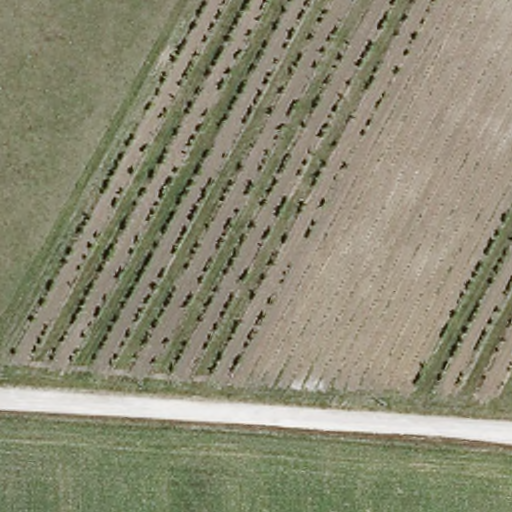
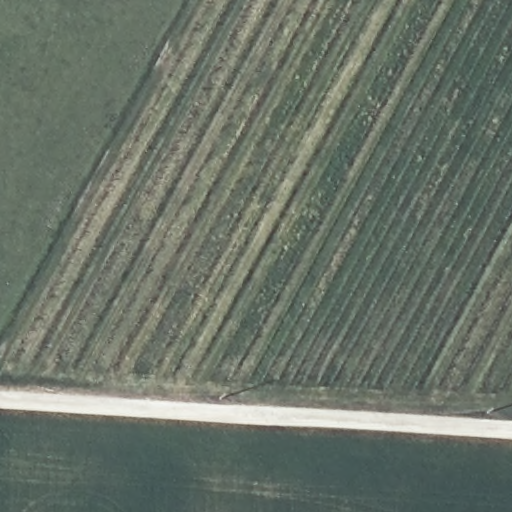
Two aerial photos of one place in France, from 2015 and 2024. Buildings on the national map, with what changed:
[]

